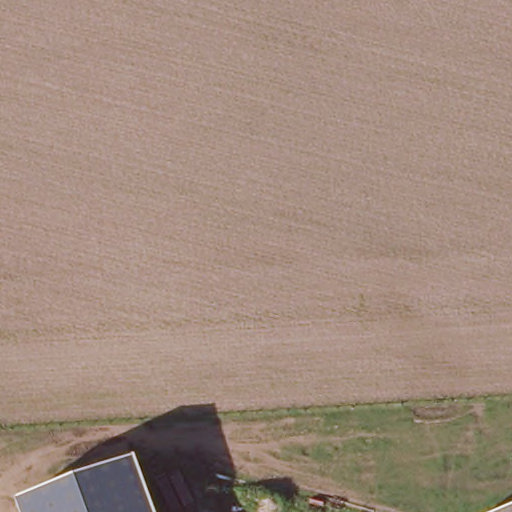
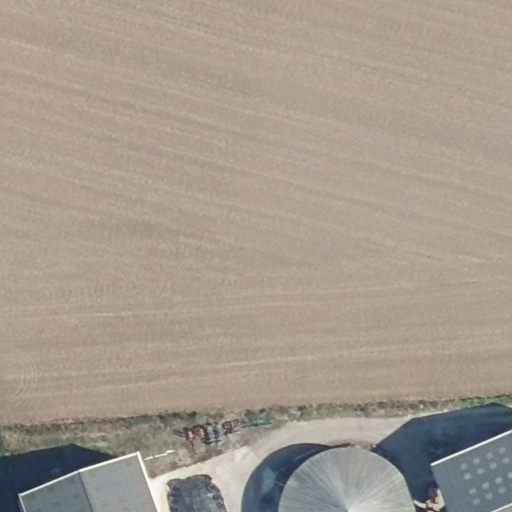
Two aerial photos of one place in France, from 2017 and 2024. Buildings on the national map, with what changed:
new [(512,452),(512,512),(440,512),(431,481),(512,452)]
new [(289,486),(298,476),(308,467),(321,460),(334,456),(347,455),(361,456),(374,460),(386,467),(397,476),(406,486),(412,499),(416,512),(278,512),(282,499),(289,486)]
unchanged [(135,464),(152,512),(19,512),(17,507),(135,464)]

